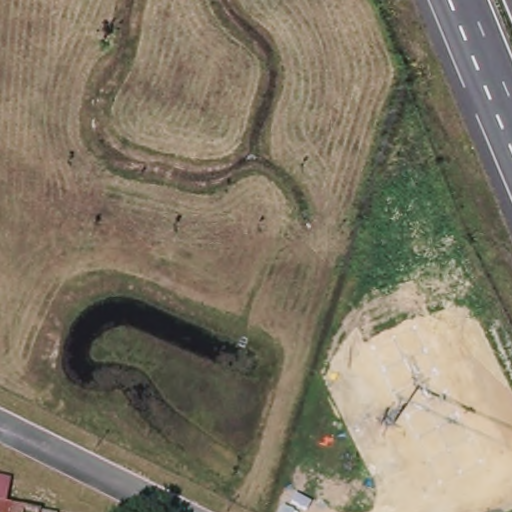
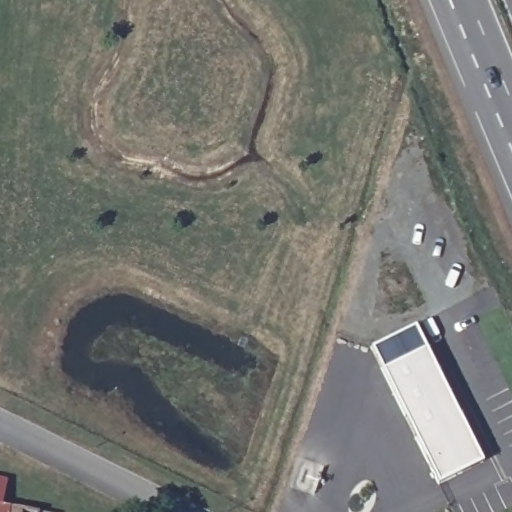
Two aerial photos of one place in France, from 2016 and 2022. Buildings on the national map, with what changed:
new [(416,326),(483,461),(439,483),(371,348),(416,326)]
unchanged [(0,504),(0,478),(6,479),(3,504),(0,504)]
unchanged [(43,512),(0,512),(0,504),(3,504),(43,512)]

